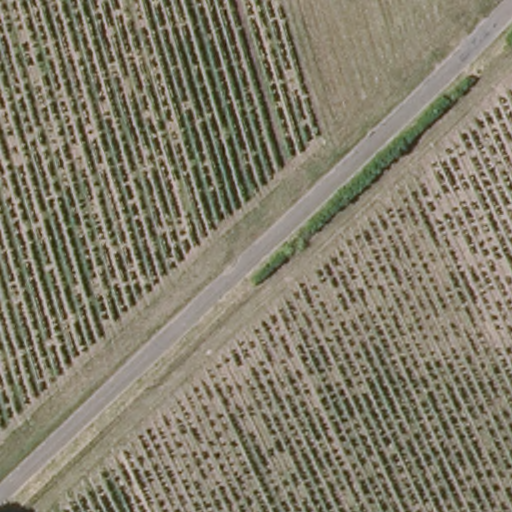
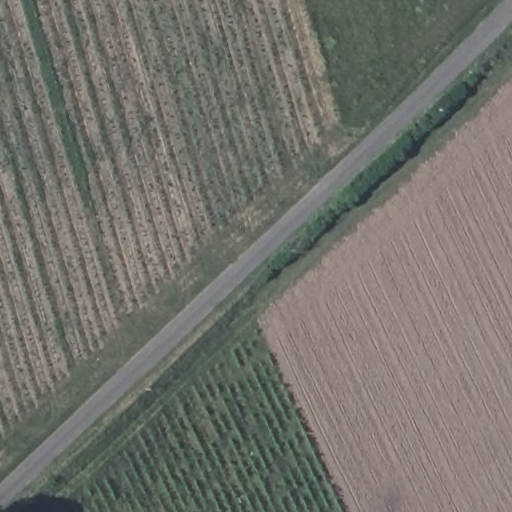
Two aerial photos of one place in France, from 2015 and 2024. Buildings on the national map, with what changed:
[]

